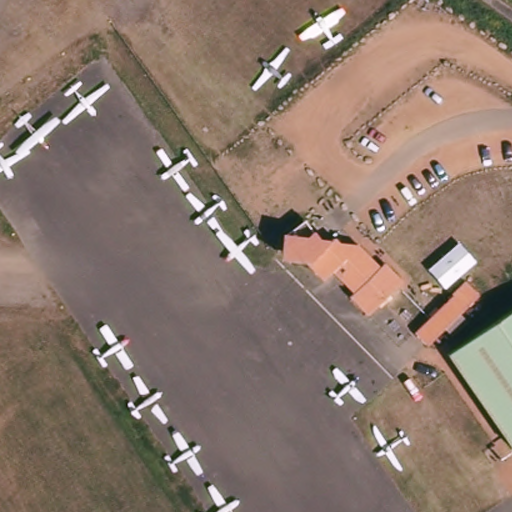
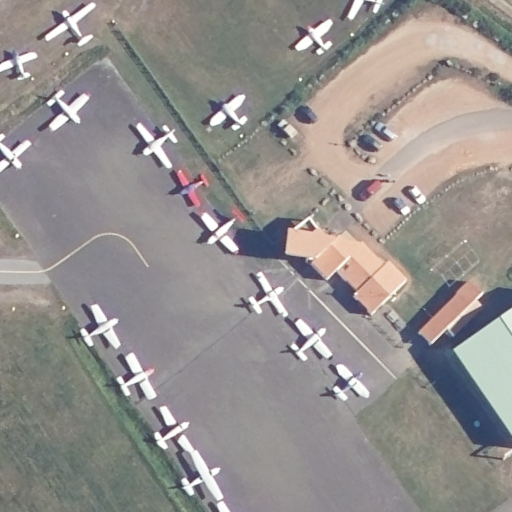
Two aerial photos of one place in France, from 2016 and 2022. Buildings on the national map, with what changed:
unchanged [(348,291),(329,268),(319,277),(305,259),(309,256),(301,255),(280,253),(282,242),(285,231),(295,223),(305,215),(314,227),(320,234),(327,237),(329,239),(333,235),(347,252),(357,244),(377,268),(381,264),(398,284),(362,314),(344,295),(348,291)]
unchanged [(413,327),(468,280),(480,295),(426,342),(413,327)]
unchanged [(453,345),(512,313),(512,444),(508,446),(453,345)]

